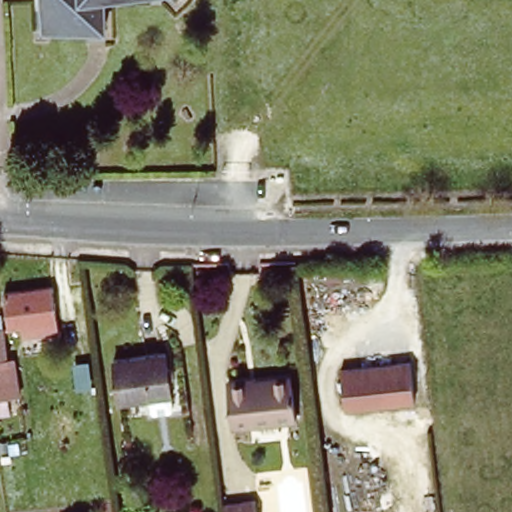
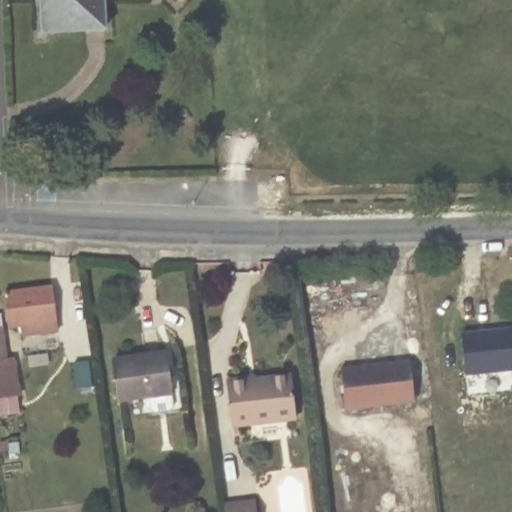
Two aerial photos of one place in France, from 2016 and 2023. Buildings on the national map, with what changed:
unchanged [(47,30),(47,0),(107,0),(106,29),(47,30)]
unchanged [(22,331),(20,321),(8,322),(6,288),(52,284),(56,318),(57,328),(22,331)]
unchanged [(5,322),(6,354),(15,354),(22,392),(0,394),(0,323),(5,322)]
new [(512,371),(465,377),(460,335),(512,330),(512,371)]
unchanged [(166,352),(170,394),(121,400),(117,357),(166,352)]
unchanged [(410,360),(414,401),(345,409),(340,368),(410,360)]
unchanged [(292,378),(297,417),(290,418),(235,426),(230,384),(285,378),(292,378)]
unchanged [(258,512),(226,512),(224,501),(255,496),(258,512)]

